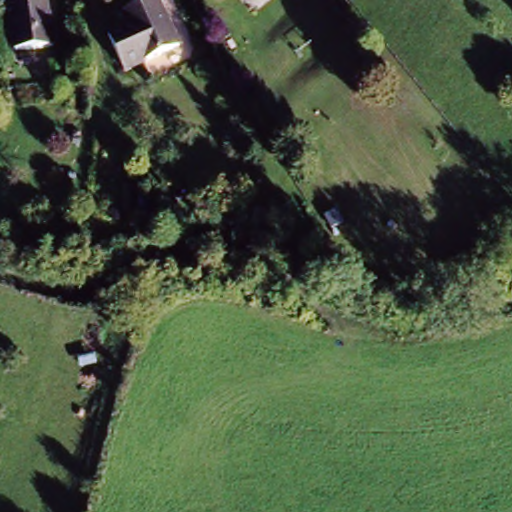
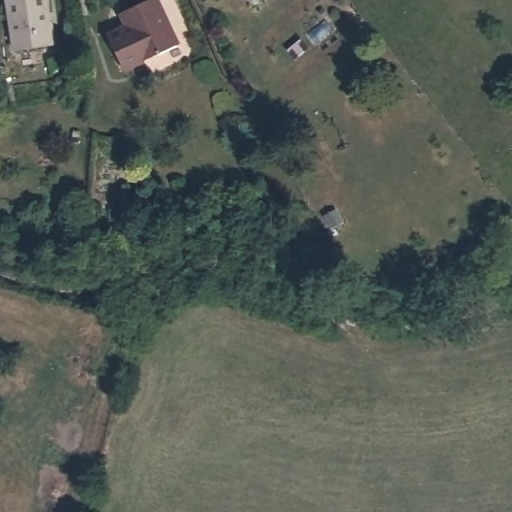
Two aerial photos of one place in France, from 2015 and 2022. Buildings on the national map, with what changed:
unchanged [(9,56),(2,4),(29,0),(39,0),(47,48),(9,56)]
unchanged [(128,69),(112,34),(131,25),(125,13),(153,0),(161,0),(182,42),(128,69)]

